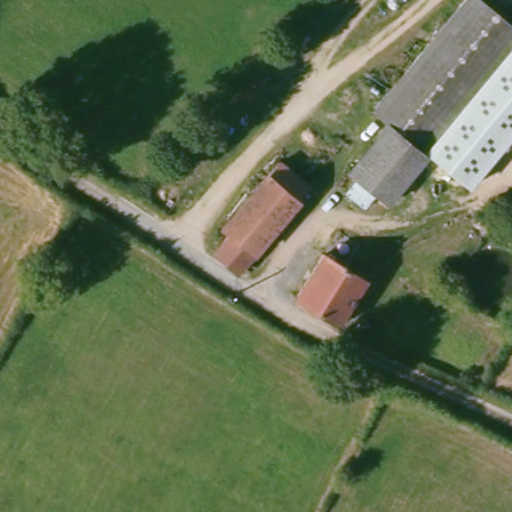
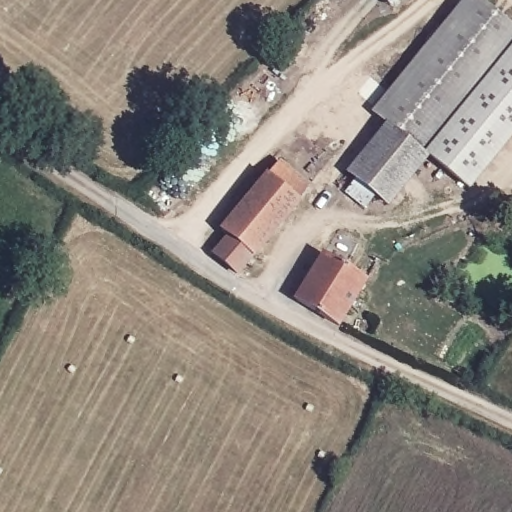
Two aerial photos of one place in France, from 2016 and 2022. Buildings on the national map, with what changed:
unchanged [(386,123),(371,112),(464,0),(485,0),(512,23),(512,46),(424,154),(386,123)]
unchanged [(470,190),(429,157),(424,154),(512,46),(512,139),(470,190)]
unchanged [(388,209),(344,174),(386,123),(424,154),(429,157),(388,209)]
unchanged [(318,194),(242,270),(211,249),(234,228),(226,223),(286,165),(318,194)]
unchanged [(334,256),(371,284),(336,328),(297,299),(334,256)]

